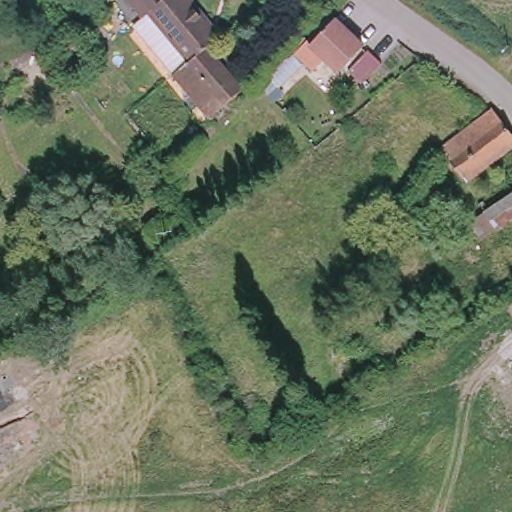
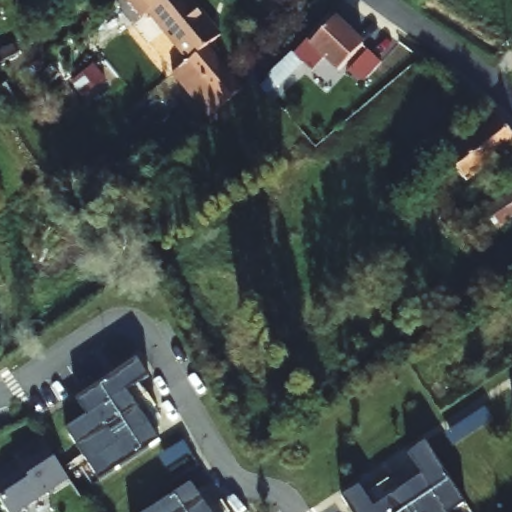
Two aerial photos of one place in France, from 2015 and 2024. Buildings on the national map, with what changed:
unchanged [(223,42),(211,52),(246,95),(211,122),(150,49),(132,30),(142,21),(123,0),(188,0),(223,42)]
unchanged [(359,40),(334,61),(322,49),(307,60),(295,47),(330,9),(359,40)]
unchanged [(344,64),(366,46),(376,60),(355,78),(344,64)]
unchanged [(461,185),(439,156),(488,117),(512,141),(512,149),(461,185)]
unchanged [(471,229),(512,199),(512,222),(480,245),(471,229)]
new [(151,375),(136,387),(165,436),(107,476),(75,427),(94,413),(81,395),(139,357),(151,375)]
new [(24,512),(20,512),(0,484),(0,479),(28,462),(23,455),(50,438),(76,478),(24,512)]
new [(381,505),(431,471),(415,450),(432,438),(471,498),(457,507),(460,512),(362,512),(349,493),(366,482),(381,505)]
new [(220,512),(151,512),(199,480),(220,512)]

